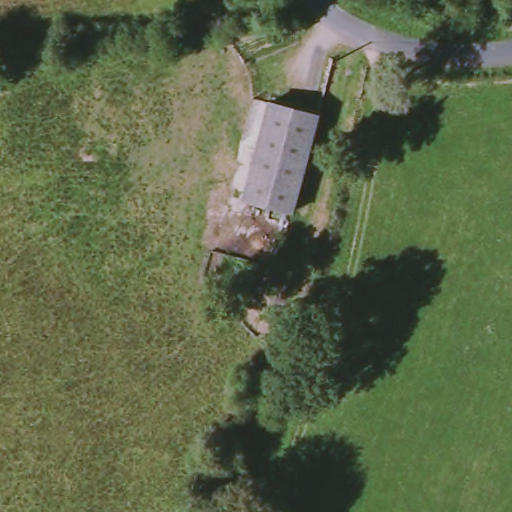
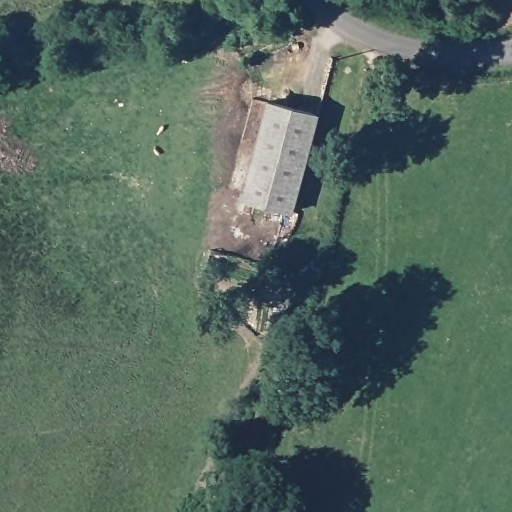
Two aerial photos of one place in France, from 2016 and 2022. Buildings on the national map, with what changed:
unchanged [(298,214),(248,200),(271,104),(324,115),(298,214)]

